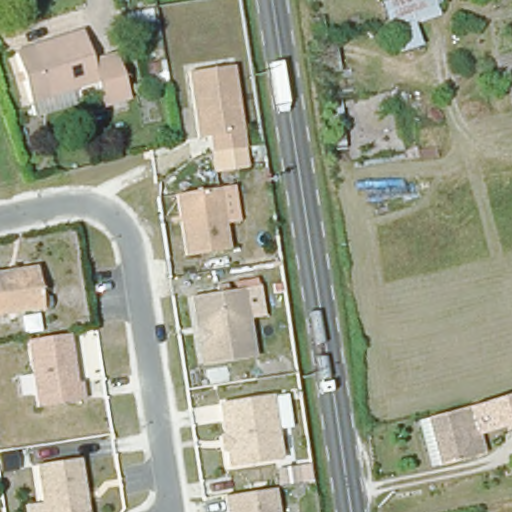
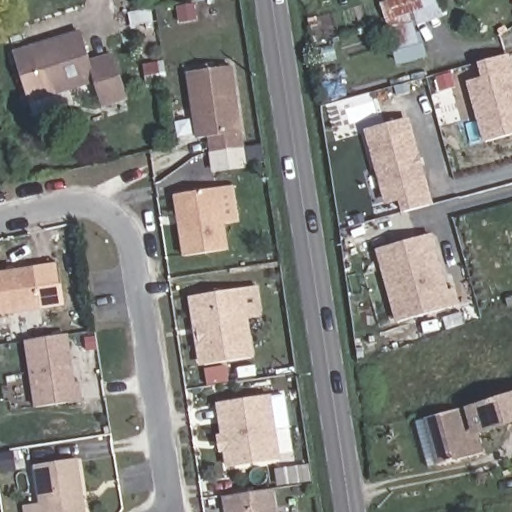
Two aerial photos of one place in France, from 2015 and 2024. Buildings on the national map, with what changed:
unchanged [(413,24),(420,47),(397,53),(375,0),(433,0),(437,15),(413,24)]
unchanged [(33,122),(29,107),(7,37),(82,16),(94,57),(124,48),(139,96),(111,105),(104,84),(72,94),(77,108),(33,122)]
new [(484,77),(480,61),(511,54),(512,58),(512,132),(486,138),(467,81),(484,77)]
unchanged [(228,154),(216,156),(214,141),(202,142),(192,75),(235,69),(246,152),(228,154)]
new [(409,117),(435,202),(405,212),(401,198),(385,204),(367,129),(409,117)]
unchanged [(221,192),(230,254),(189,260),(180,199),(221,192)]
new [(435,232),(458,305),(398,320),(377,247),(435,232)]
unchanged [(45,312),(0,319),(0,275),(39,270),(45,312)]
unchanged [(251,361),(204,368),(195,315),(192,315),(190,300),(240,292),(251,361)]
unchanged [(77,387),(82,386),(85,404),(40,411),(30,344),(70,338),(77,387)]
unchanged [(512,394),(512,428),(482,436),(487,458),(443,471),(431,474),(416,422),(428,419),(512,394)]
unchanged [(231,425),(224,426),(222,408),(272,401),(282,462),(231,470),(228,452),(223,453),(221,441),(232,438),(231,425)]
unchanged [(80,463),(87,512),(45,512),(39,470),(80,463)]
unchanged [(227,500),(275,493),(277,512),(230,512),(227,500)]

